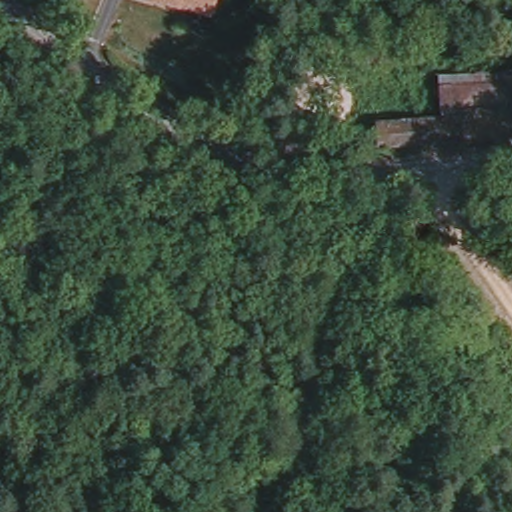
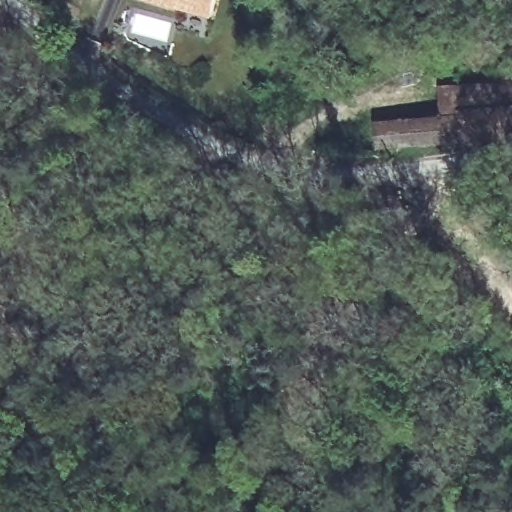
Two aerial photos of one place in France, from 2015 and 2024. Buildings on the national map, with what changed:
unchanged [(171,0),(215,0),(212,11),(171,0)]
unchanged [(387,120),(455,114),(453,89),(512,83),(512,136),(388,147),(387,120)]

